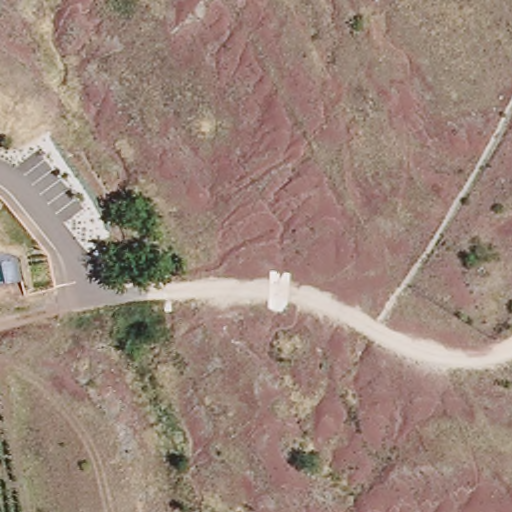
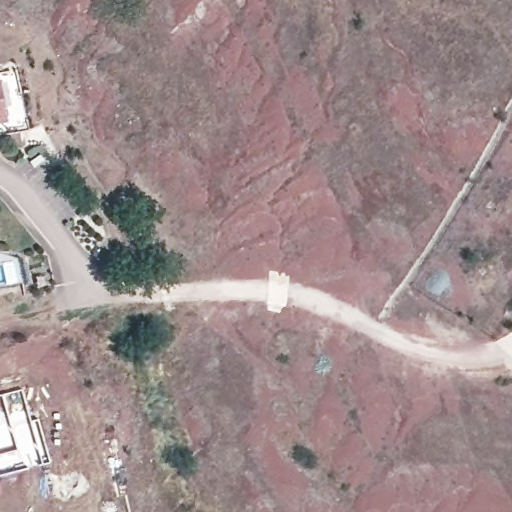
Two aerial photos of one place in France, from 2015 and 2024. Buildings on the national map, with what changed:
new [(0,119),(0,93),(5,118),(0,119)]
new [(32,419),(36,419),(49,463),(0,476),(0,393),(22,388),(32,419)]

